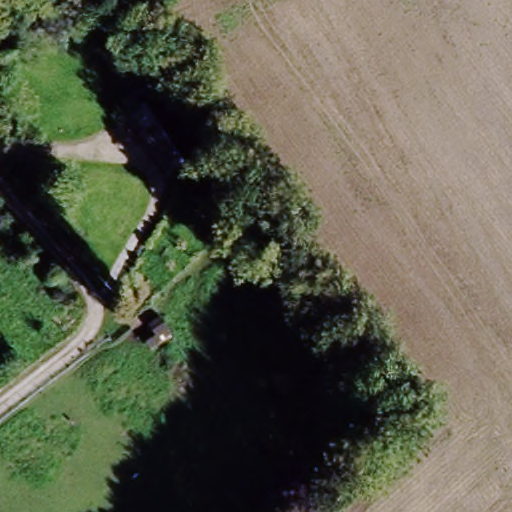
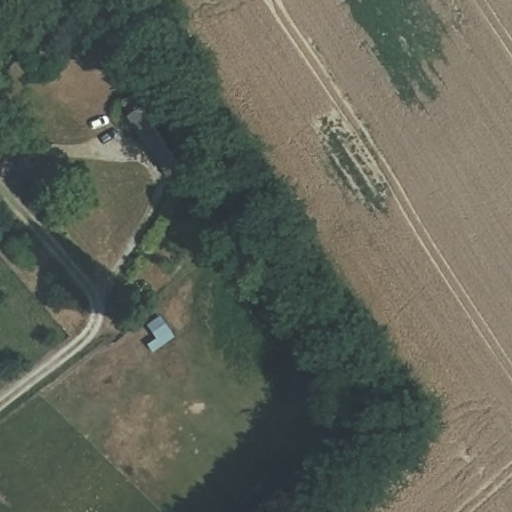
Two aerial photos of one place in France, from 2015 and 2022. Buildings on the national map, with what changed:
unchanged [(129,126),(155,107),(191,162),(163,181),(129,126)]

